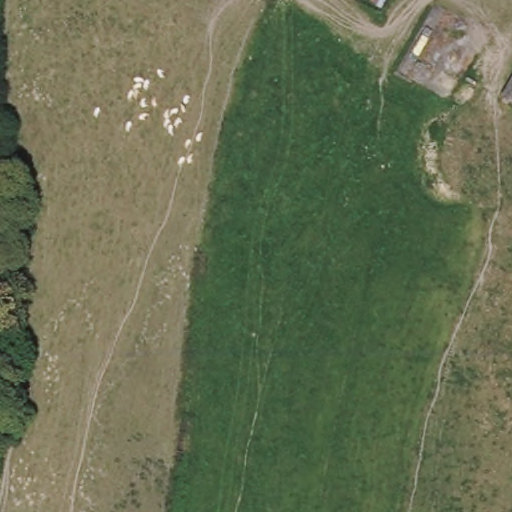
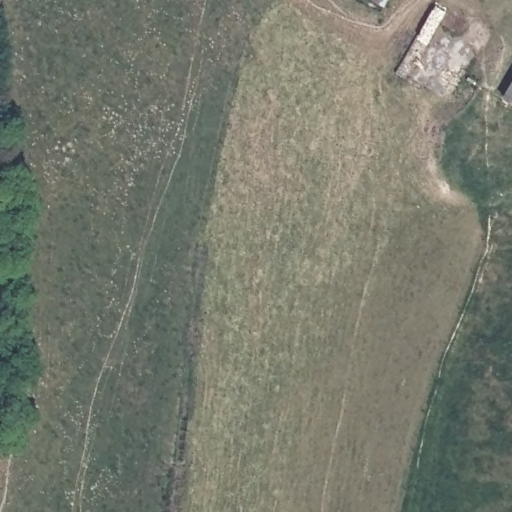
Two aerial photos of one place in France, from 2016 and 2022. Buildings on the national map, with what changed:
unchanged [(512,94),(512,98),(510,97),(512,94)]

